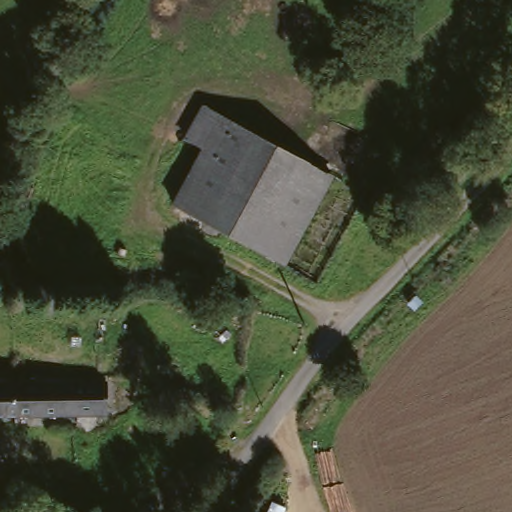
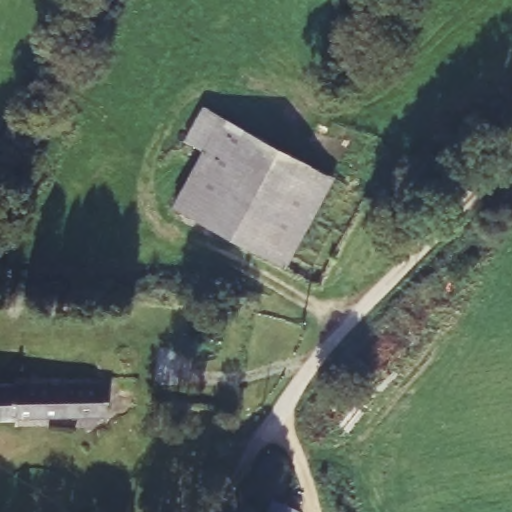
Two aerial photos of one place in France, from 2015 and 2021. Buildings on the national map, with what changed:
unchanged [(168,212),(196,155),(177,147),(192,114),(310,168),(270,261),(168,212)]
unchanged [(310,168),(325,174),(284,266),(270,261),(310,168)]
unchanged [(71,423),(40,423),(11,423),(0,422),(0,389),(41,391),(101,392),(102,424),(90,423),(71,423)]

